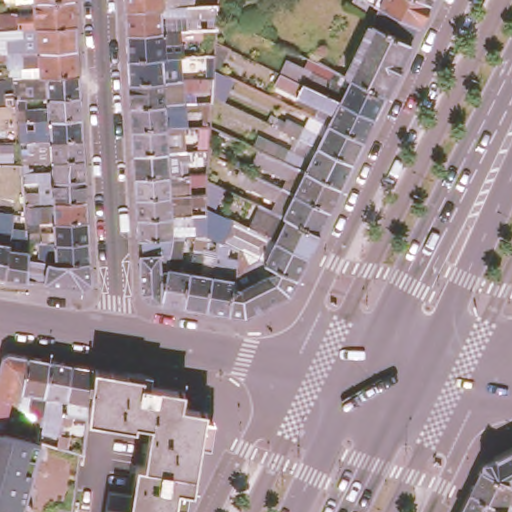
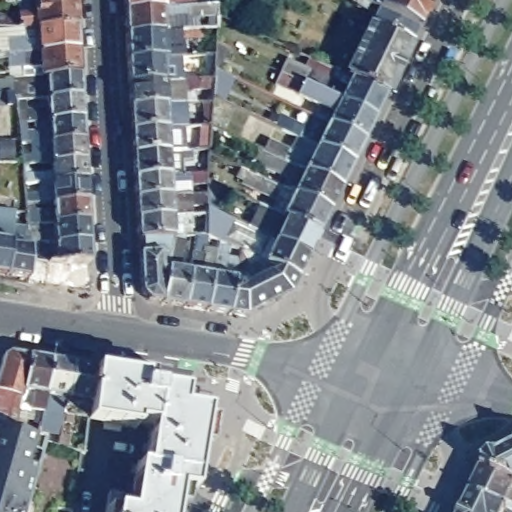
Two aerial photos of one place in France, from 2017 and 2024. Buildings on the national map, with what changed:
unchanged [(33,6),(17,6),(17,0),(74,0),(74,4),(33,6)]
unchanged [(136,221),(135,201),(134,181),(133,157),(131,133),(129,110),(128,86),(127,62),(125,37),(124,12),(123,0),(178,0),(178,1),(185,0),(193,0),(193,9),(208,8),(208,0),(217,0),(216,7),(216,17),(216,18),(216,31),(215,39),(214,44),(214,57),(205,57),(206,40),(203,40),(181,42),(181,46),(163,47),(164,60),(176,59),(182,59),(183,82),(205,81),(213,81),(213,91),(194,92),(196,106),(186,106),(186,131),(184,131),(186,154),(199,153),(201,153),(201,130),(204,130),(203,105),(212,105),(211,130),(209,152),(209,157),(208,176),(208,182),(226,192),(214,214),(248,230),(259,208),(269,213),(276,202),(241,185),(243,182),(236,179),(240,172),(281,192),(287,179),(263,167),(268,157),(251,149),(256,138),(294,157),(301,142),(299,141),(279,131),(274,129),(267,125),(271,117),(279,120),(283,122),(284,121),(294,126),(301,114),(309,118),(314,120),(320,109),(296,97),(274,87),(279,76),(283,77),(289,67),(311,78),(313,75),(336,87),(341,77),(344,79),(370,27),(378,10),(363,2),(358,0),(433,0),(429,7),(418,30),(410,47),(384,99),(374,121),(363,144),(351,167),(339,192),(328,215),(318,237),(306,259),(296,281),(289,297),(244,320),(227,317),(205,313),(183,310),(161,306),(146,303),(141,296),(138,242),(136,221)]
unchanged [(16,42),(15,32),(0,33),(0,18),(16,17),(34,16),(33,6),(74,4),(75,28),(77,53),(78,77),(23,81),(23,72),(8,72),(6,58),(4,44),(16,42)]
unchanged [(35,145),(26,146),(19,146),(17,126),(15,104),(5,105),(3,82),(13,82),(23,81),(78,77),(79,100),(81,122),(82,142),(35,145)]
unchanged [(24,166),(24,157),(35,156),(35,145),(82,142),(83,162),(52,165),(28,166),(24,166)]
unchanged [(10,167),(10,156),(19,155),(20,166),(24,166),(28,166),(29,175),(53,174),(52,165),(83,162),(84,185),(85,205),(87,226),(88,246),(89,266),(90,287),(83,292),(26,284),(3,281),(0,280),(0,224),(12,227),(11,231),(27,234),(26,228),(25,219),(25,213),(33,212),(34,227),(40,227),(40,218),(54,217),(53,206),(41,207),(39,186),(30,187),(30,191),(23,191),(23,187),(21,177),(0,176),(0,166),(10,167)]
unchanged [(8,350),(13,347),(33,350),(54,354),(76,357),(98,361),(148,370),(147,377),(189,384),(186,400),(211,403),(198,485),(181,482),(177,512),(110,512),(111,503),(114,486),(136,490),(142,460),(148,462),(156,421),(142,418),(141,422),(92,413),(93,408),(78,406),(75,421),(71,443),(63,441),(46,436),(30,491),(35,493),(38,499),(37,512),(0,512),(0,378),(8,350)]
unchanged [(469,492),(481,468),(484,462),(512,449),(512,512),(460,512),(469,492)]

